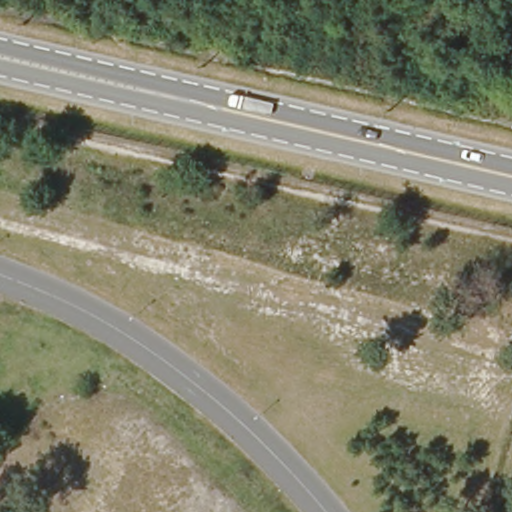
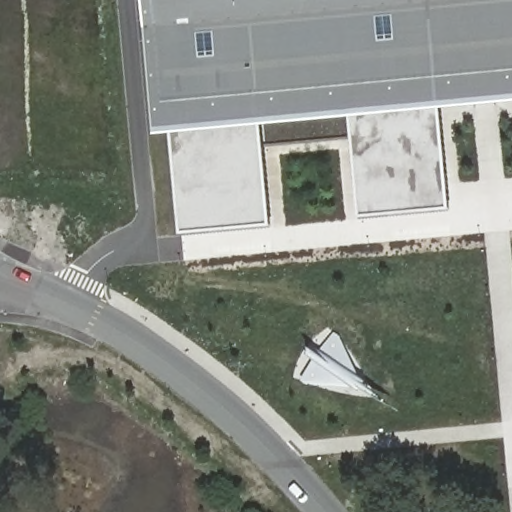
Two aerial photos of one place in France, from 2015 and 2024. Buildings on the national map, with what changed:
new [(452,212),(394,216),(392,187),(356,192),(351,139),(264,146),(271,227),(182,235),(167,64),(161,0),(512,0),(512,98),(442,104),(452,212)]

